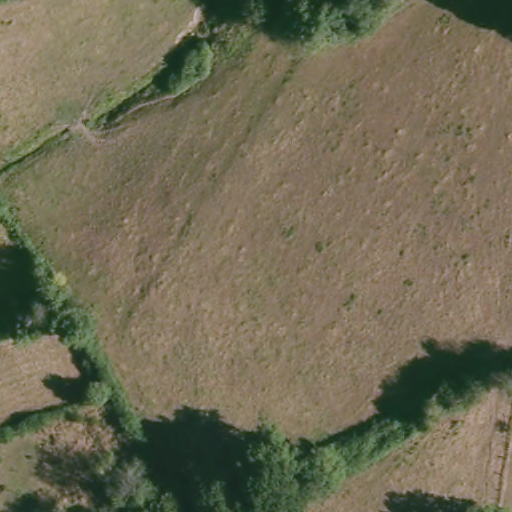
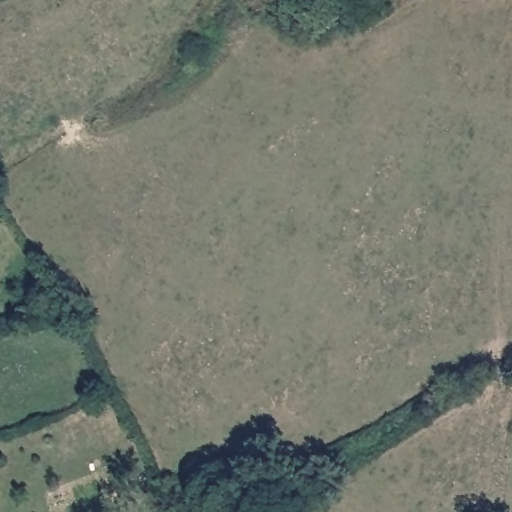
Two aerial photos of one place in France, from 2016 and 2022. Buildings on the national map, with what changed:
[]

